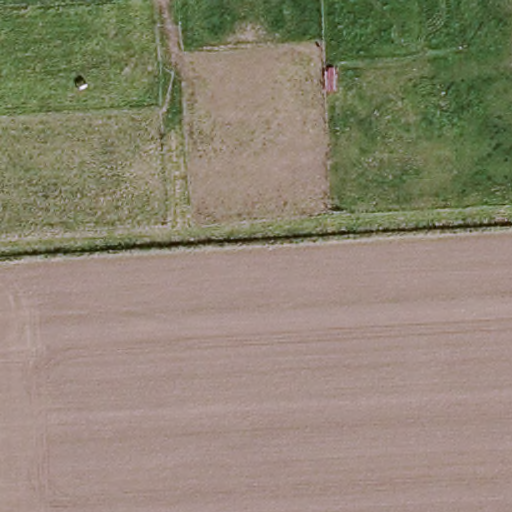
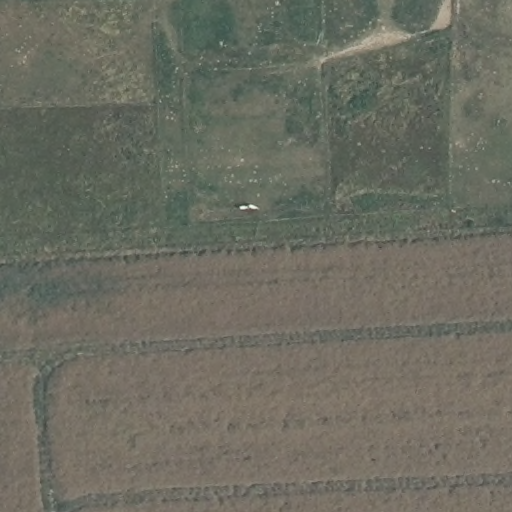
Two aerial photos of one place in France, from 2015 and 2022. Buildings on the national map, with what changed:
[]

